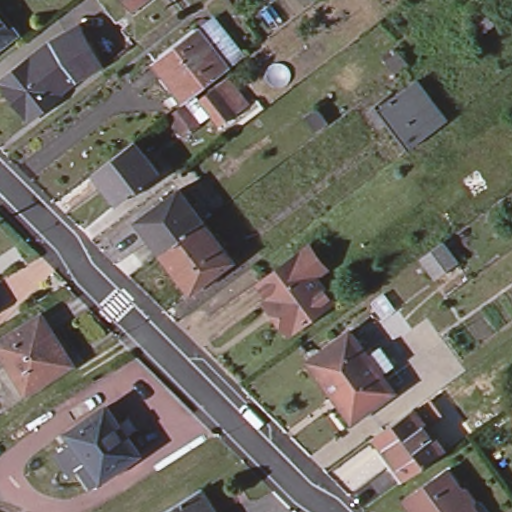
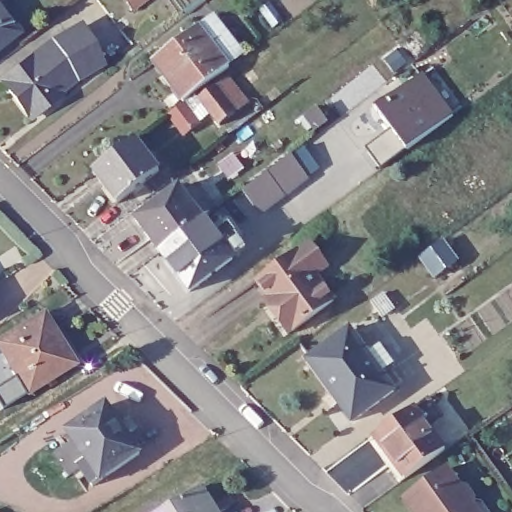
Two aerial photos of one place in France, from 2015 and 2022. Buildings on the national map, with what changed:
unchanged [(132,15),(120,0),(150,0),(135,11),(132,15)]
unchanged [(0,47),(0,15),(16,34),(0,47)]
unchanged [(163,114),(178,104),(149,62),(215,16),(244,54),(229,69),(247,105),(217,133),(205,116),(181,139),(163,114)]
unchanged [(18,71),(52,44),(79,30),(100,69),(75,80),(57,95),(59,98),(30,121),(7,93),(1,85),(18,71)]
unchanged [(377,113),(374,108),(392,94),(396,99),(415,84),(425,97),(446,124),(408,153),(387,126),(377,113)]
unchanged [(160,174),(117,206),(94,175),(136,143),(160,174)]
new [(292,158),(309,180),(261,216),(244,194),(292,158)]
unchanged [(177,189),(205,224),(161,257),(135,222),(177,189)]
unchanged [(205,224),(223,249),(233,262),(190,294),(180,281),(161,257),(205,224)]
unchanged [(267,291),(256,276),(296,246),(307,238),(324,261),(312,269),(331,295),(285,328),(272,310),(261,295),(267,291)]
unchanged [(442,243),(457,264),(436,280),(421,259),(442,243)]
unchanged [(0,356),(0,336),(37,313),(69,362),(23,391),(0,356)]
unchanged [(334,397),(327,387),(309,363),(350,332),(368,356),(395,393),(359,419),(353,424),(334,397)]
unchanged [(376,453),(382,450),(370,433),(409,405),(441,447),(428,456),(395,480),(376,453)]
unchanged [(81,472),(90,465),(75,443),(70,437),(108,411),(114,419),(135,449),(142,458),(103,484),(86,479),(81,472)]
unchanged [(405,497),(447,468),(461,486),(467,485),(486,512),(415,512),(405,497)]
unchanged [(194,495),(199,492),(210,509),(212,512),(165,512),(194,495)]

